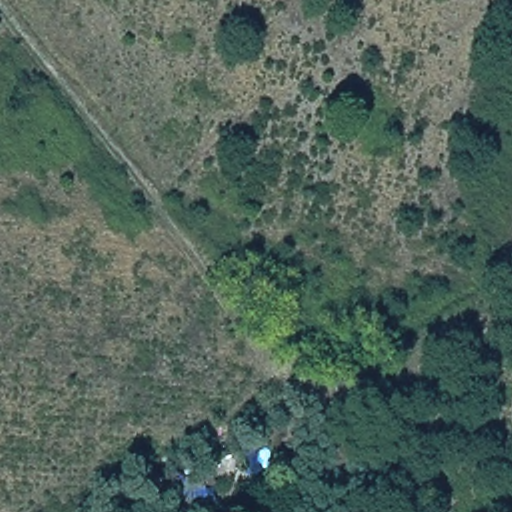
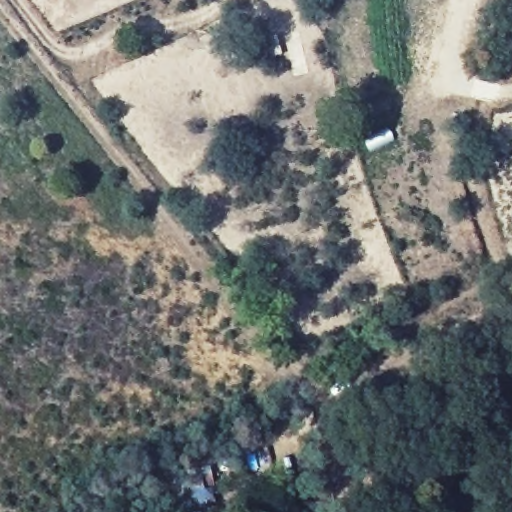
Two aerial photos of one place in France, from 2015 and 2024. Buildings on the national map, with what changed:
unchanged [(200,475),(200,487),(181,488),(181,476),(200,475)]

